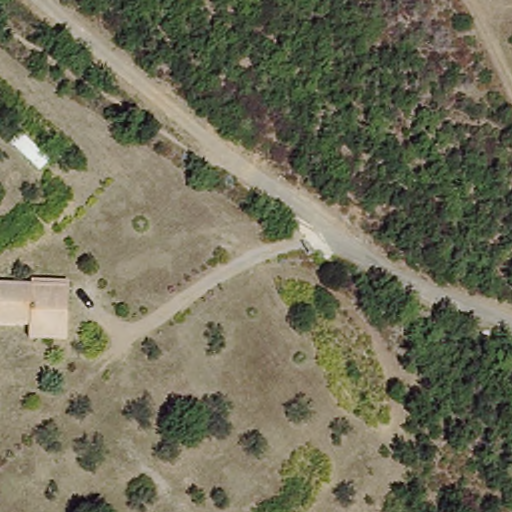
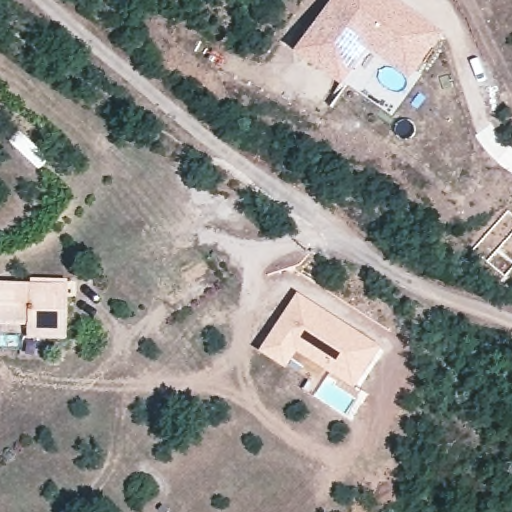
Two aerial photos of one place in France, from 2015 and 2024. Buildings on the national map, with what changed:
new [(343,83),(299,48),(334,0),(400,0),(446,32),(411,80),(370,52),(343,83)]
unchanged [(54,330),(50,330),(24,330),(24,326),(0,325),(0,283),(28,283),(63,284),(62,293),(62,312),(63,337),(55,337),(54,330)]
new [(301,294),(384,347),(356,390),(367,397),(358,412),(351,408),(355,400),(327,382),(317,398),(303,390),(310,379),(297,370),(264,352),(301,294)]
demolished [(59,459),(79,463),(77,475),(58,474),(59,459)]

